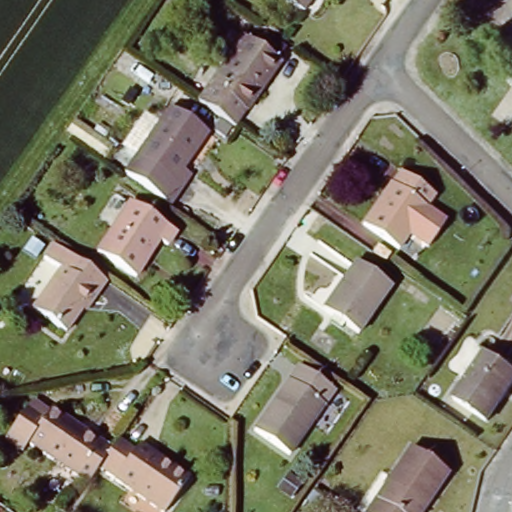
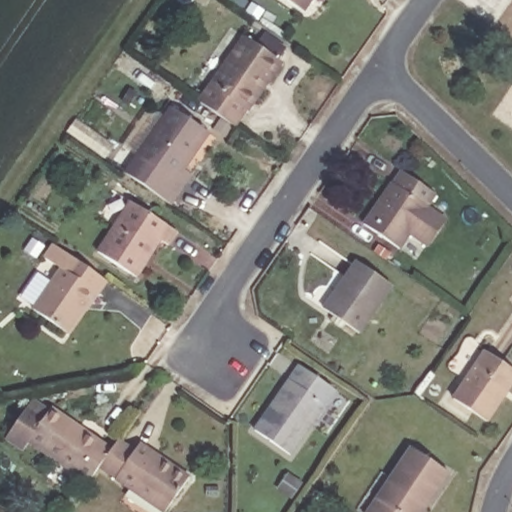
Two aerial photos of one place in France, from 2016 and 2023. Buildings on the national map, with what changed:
unchanged [(284,0),(313,0),(303,14),(284,0)]
unchanged [(198,102),(245,36),(247,38),(256,25),(288,46),(279,60),(235,127),(198,102)]
unchanged [(169,105),(205,131),(195,145),(192,143),(178,161),(188,168),(177,184),(134,154),(169,105)]
unchanged [(398,175),(432,198),(423,212),(443,226),(429,249),(408,235),(399,250),(364,226),(398,175)]
unchanged [(132,202),(176,233),(167,246),(157,238),(143,256),(150,261),(137,278),(98,250),(132,202)]
unchanged [(77,309),(61,332),(27,309),(64,255),(104,282),(93,297),(82,313),(77,309)]
unchanged [(358,263),(390,285),(355,332),(325,309),(358,263)]
unchanged [(485,418),(455,396),(485,352),(510,369),(512,370),(512,378),(496,401),(485,418)]
unchanged [(295,367),(331,391),(289,456),(253,432),(295,367)]
unchanged [(112,451),(100,468),(85,490),(27,450),(22,458),(3,445),(27,411),(43,422),(50,411),(112,451)]
unchanged [(189,474),(163,511),(100,468),(112,451),(120,438),(135,449),(140,440),(189,474)]
unchanged [(411,445),(452,472),(425,512),(367,512),(411,445)]

